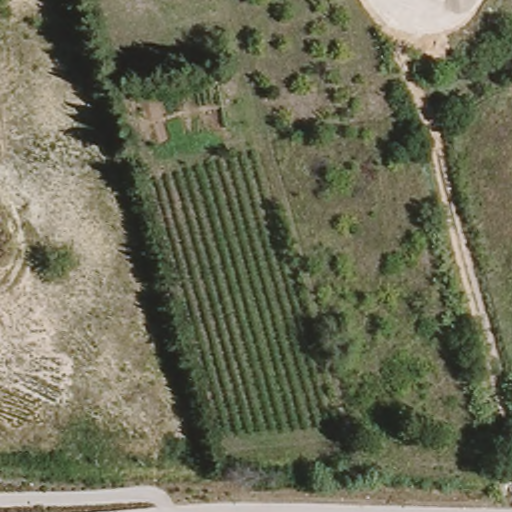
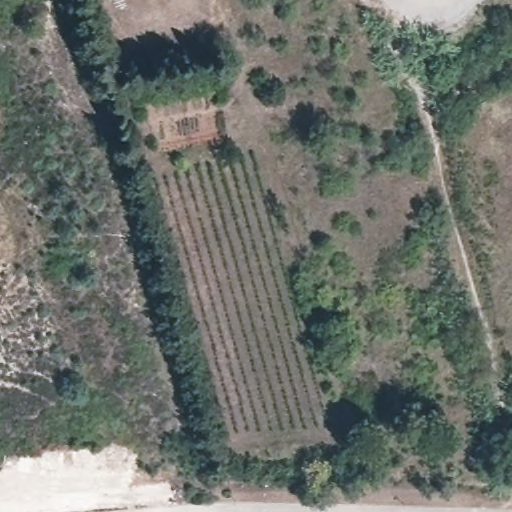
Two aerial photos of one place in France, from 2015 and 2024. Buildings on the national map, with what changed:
[]

